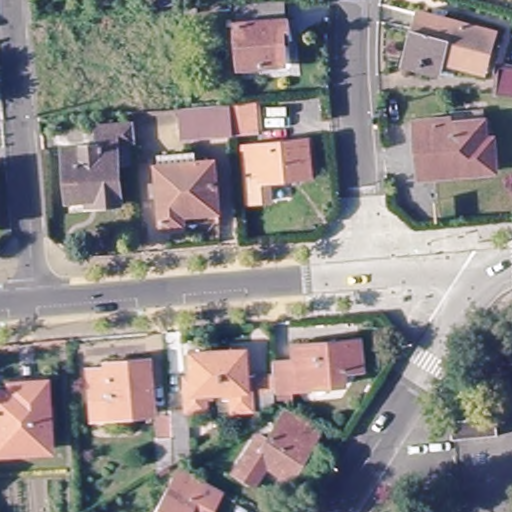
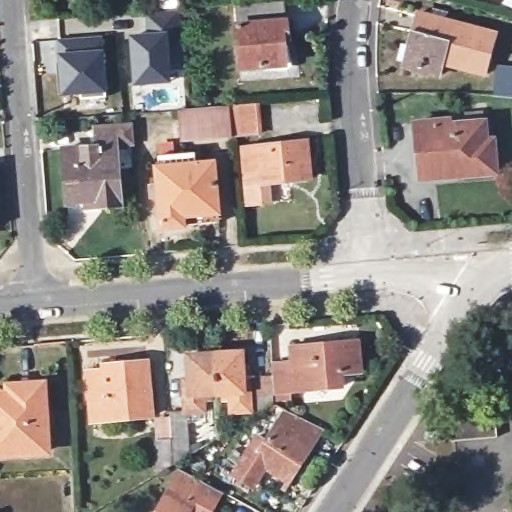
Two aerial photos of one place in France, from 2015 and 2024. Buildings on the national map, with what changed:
new [(151,85),(135,87),(131,39),(149,38),(148,13),(179,11),(182,64),(168,65),(169,84),(151,85)]
unchanged [(288,53),(283,54),(283,75),(239,77),(235,16),(284,12),(288,53)]
unchanged [(495,34),(484,76),(443,65),(438,77),(405,67),(418,17),(495,34)]
new [(59,41),(101,37),(105,100),(81,101),(80,95),(63,96),(59,97),(56,64),(60,63),(59,41)]
unchanged [(497,99),(498,70),(512,70),(512,99),(497,99)]
unchanged [(263,106),(266,136),(237,138),(189,142),(186,112),(190,112),(235,108),(263,106)]
unchanged [(447,122),(481,119),(483,131),(485,151),(492,151),(494,178),(461,181),(460,185),(420,188),(416,138),(448,135),(447,122)]
unchanged [(92,144),(91,126),(128,124),(132,168),(114,169),(117,201),(93,202),(93,197),(63,199),(59,147),(92,144)]
unchanged [(310,144),(313,179),(275,183),(277,202),(253,204),(248,151),(310,144)]
unchanged [(184,227),(163,229),(160,201),(151,202),(150,187),(159,187),(156,169),(214,163),(220,214),(221,225),(184,227)]
unchanged [(276,408),(272,407),(254,417),(252,381),(270,380),(270,370),(291,368),(289,352),(356,346),(357,376),(340,377),(341,391),(291,395),(291,407),(276,408)]
unchanged [(154,442),(169,442),(168,417),(183,416),(181,384),(188,384),(187,362),(238,358),(240,381),(246,381),(248,416),(229,417),(228,397),(201,399),(202,417),(185,418),(187,459),(183,462),(171,469),(156,478),(154,442)]
unchanged [(113,375),(112,370),(154,366),(159,421),(117,424),(102,426),(100,405),(98,377),(113,375)]
unchanged [(0,454),(0,395),(2,395),(1,388),(42,385),(46,451),(0,454)]
unchanged [(288,486),(263,472),(252,491),(232,479),(256,441),(266,446),(285,413),(320,432),(288,486)]
unchanged [(486,438),(443,443),(440,425),(484,420),(486,438)]
unchanged [(226,500),(220,512),(158,512),(179,473),(204,487),(226,500)]

